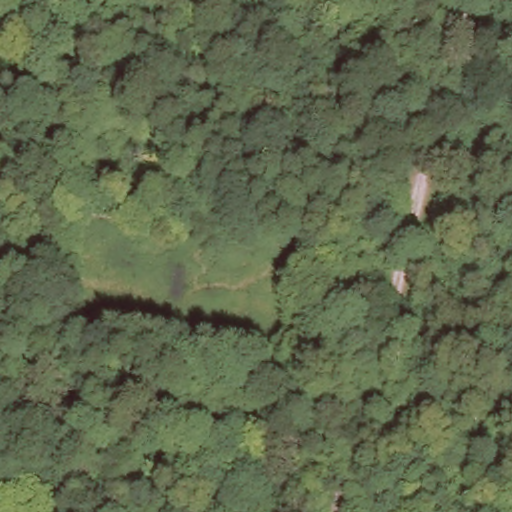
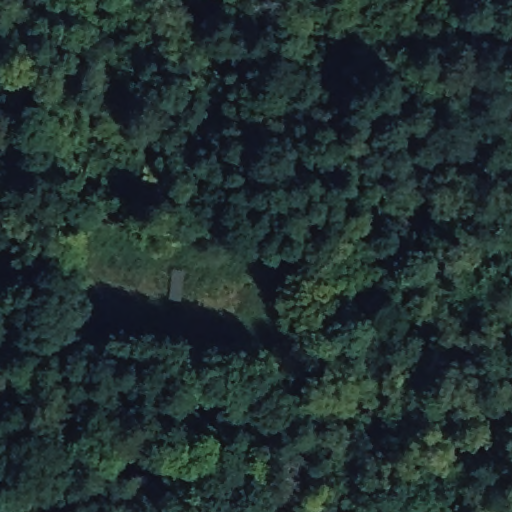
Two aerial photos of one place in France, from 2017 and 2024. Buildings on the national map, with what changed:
unchanged [(179,296),(168,295),(171,269),(182,270),(179,296)]

